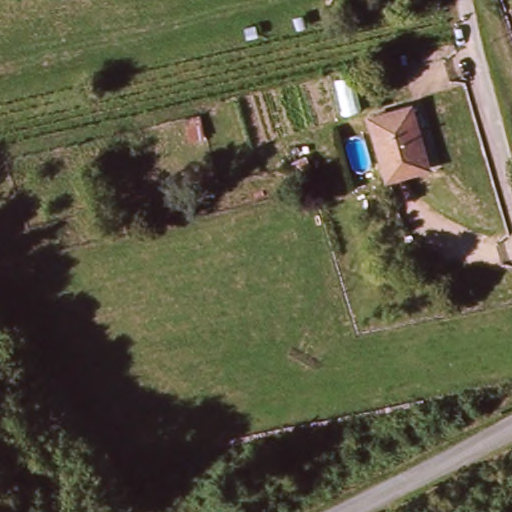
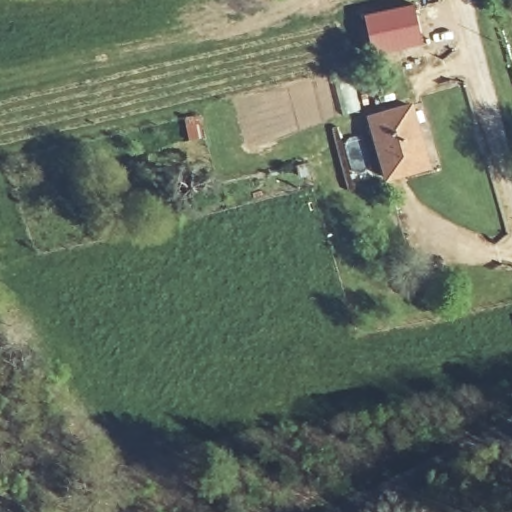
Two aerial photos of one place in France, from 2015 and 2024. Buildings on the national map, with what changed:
new [(414,3),(422,46),(371,56),(362,14),(414,3)]
unchanged [(410,106),(428,169),(388,179),(371,117),(410,106)]

